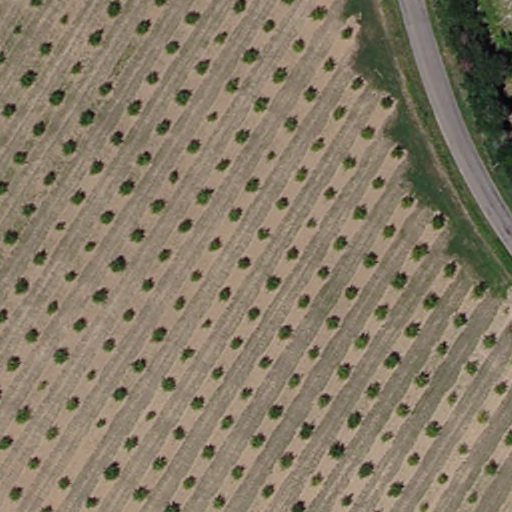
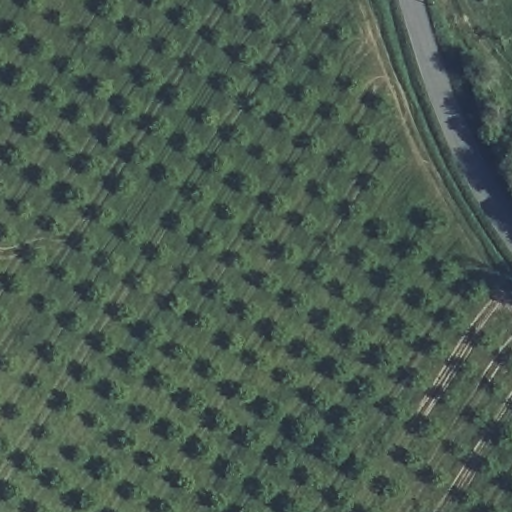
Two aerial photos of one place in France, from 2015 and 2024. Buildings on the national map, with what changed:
[]

